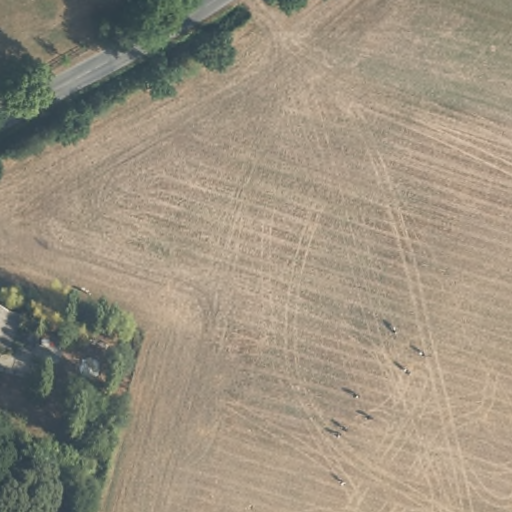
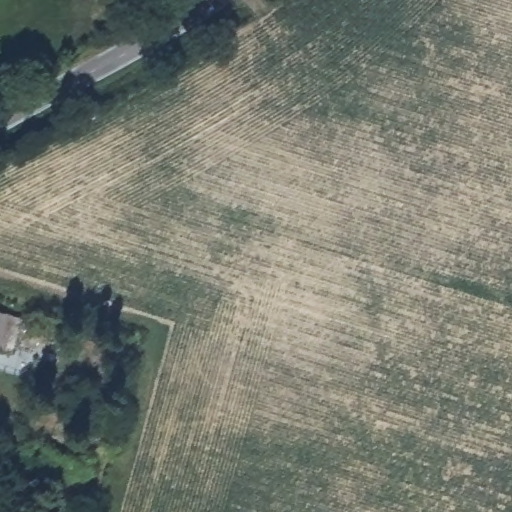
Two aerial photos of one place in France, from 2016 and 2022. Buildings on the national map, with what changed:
unchanged [(4,312),(0,326),(0,311),(4,312)]

